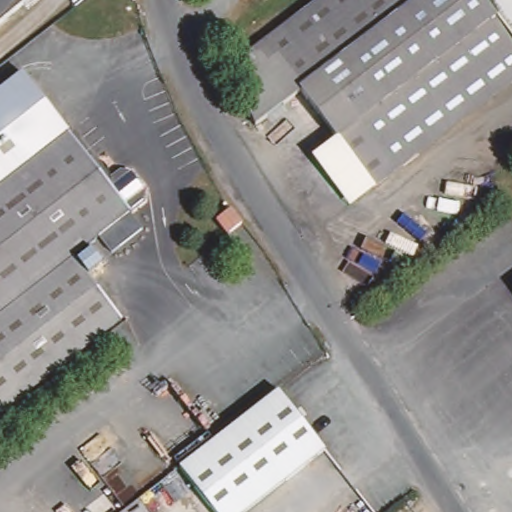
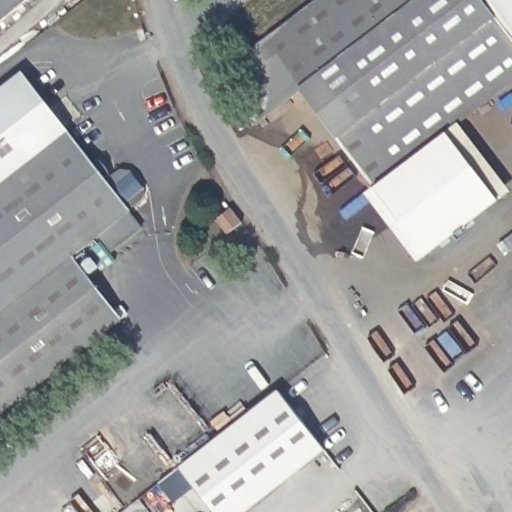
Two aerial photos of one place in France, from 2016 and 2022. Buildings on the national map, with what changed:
unchanged [(0,25),(0,0),(29,0),(0,25)]
unchanged [(373,186),(302,90),(259,120),(256,122),(242,92),(234,74),(229,64),(242,54),(250,48),(315,0),(415,0),(317,74),(392,172),(373,186)]
unchanged [(512,84),(392,172),(317,74),(415,0),(512,0),(512,84)]
unchanged [(87,282),(122,325),(0,421),(0,94),(22,77),(39,100),(69,137),(106,185),(120,174),(131,175),(144,192),(142,202),(129,214),(131,216),(129,217),(142,233),(112,258),(98,242),(87,251),(103,270),(87,282)]
new [(511,190),(497,202),(427,256),(417,262),(364,192),(373,186),(392,172),(446,132),(459,124),(511,190)]
unchanged [(230,207),(242,222),(227,234),(216,219),(230,207)]
unchanged [(279,389),(326,449),(245,512),(213,512),(179,468),(279,389)]

